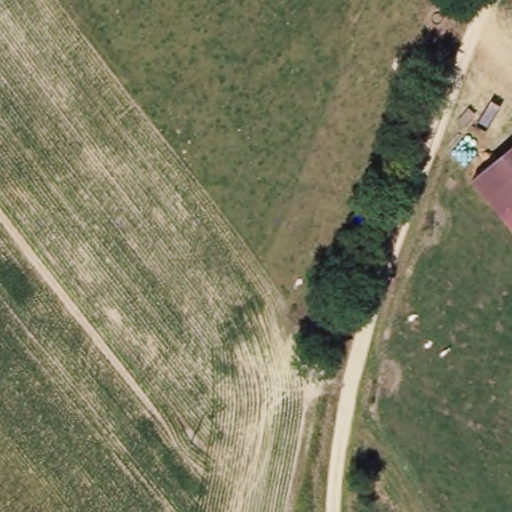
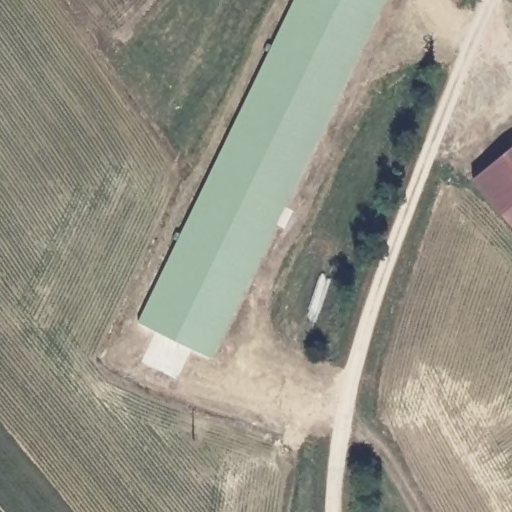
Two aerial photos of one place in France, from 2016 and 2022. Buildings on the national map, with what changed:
new [(138,322),(293,0),(385,0),(212,357),(138,322)]
unchanged [(512,147),(512,224),(475,177),(512,147)]

